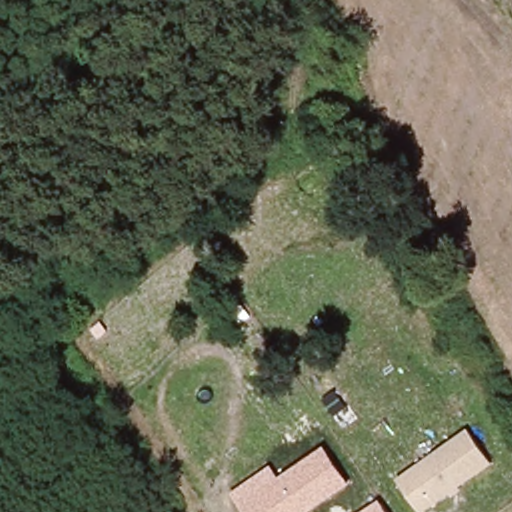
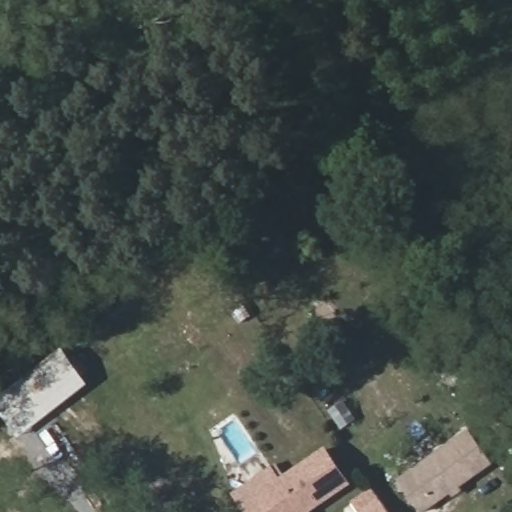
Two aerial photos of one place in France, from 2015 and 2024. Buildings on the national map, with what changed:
new [(89,384),(19,439),(0,414),(0,398),(63,350),(89,384)]
unchanged [(495,466),(428,512),(418,512),(396,479),(468,428),(495,466)]
unchanged [(351,486),(313,512),(243,512),(230,495),(272,466),(279,477),(324,446),(351,486)]
unchanged [(380,501),(388,512),(364,512),(380,501)]

